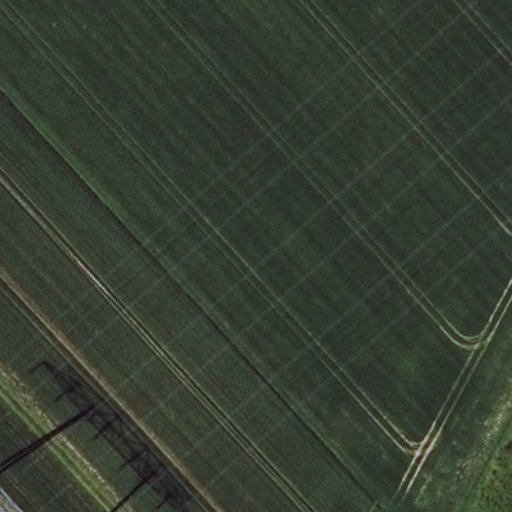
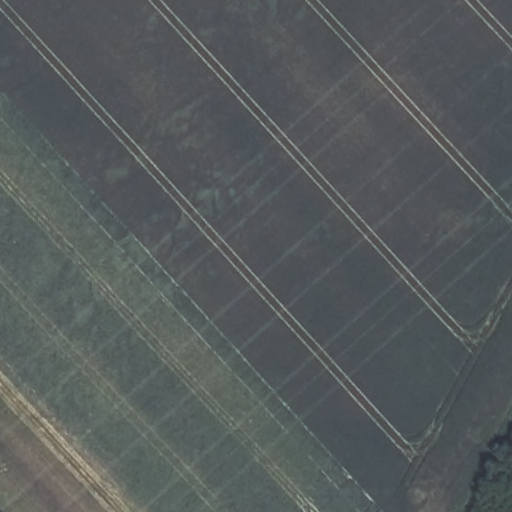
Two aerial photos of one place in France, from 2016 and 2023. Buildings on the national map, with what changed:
[]

